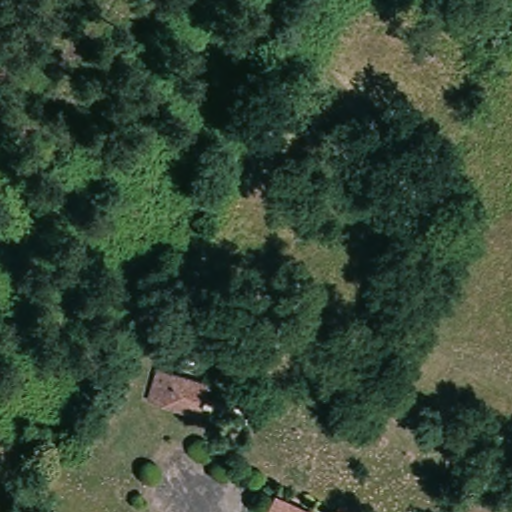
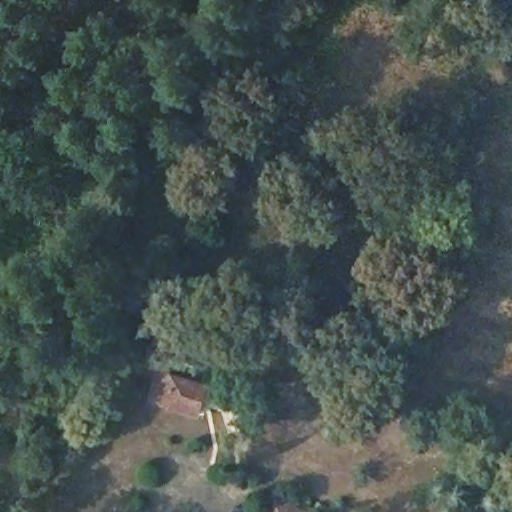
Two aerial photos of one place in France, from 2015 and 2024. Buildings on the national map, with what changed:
unchanged [(146,403),(157,368),(204,382),(196,418),(146,403)]
unchanged [(275,496),(311,512),(268,512),(275,496)]
unchanged [(338,505),(354,512),(334,512),(338,505)]

